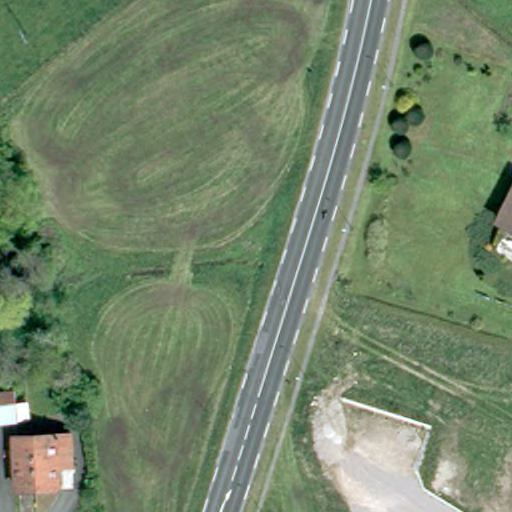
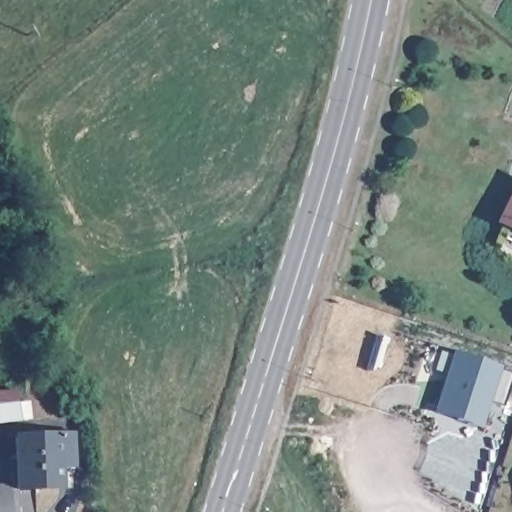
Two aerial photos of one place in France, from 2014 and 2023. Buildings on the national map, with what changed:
unchanged [(512,200),(512,228),(500,222),(512,200)]
new [(448,356),(507,375),(497,408),(480,403),(473,427),(452,420),(430,413),(433,404),(448,356)]
unchanged [(0,403),(21,401),(22,416),(0,419),(0,403)]
unchanged [(72,438),(75,469),(57,471),(60,492),(20,497),(12,445),(72,438)]

